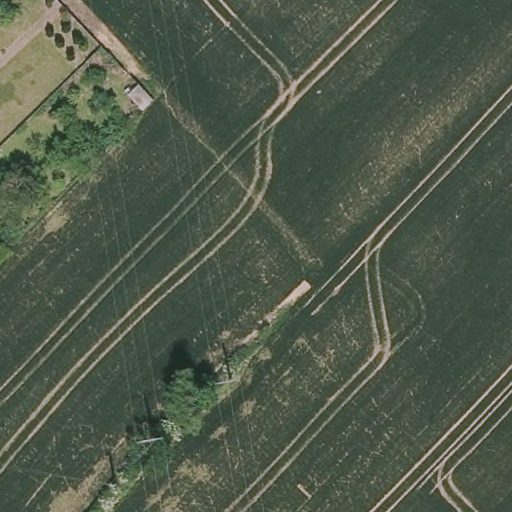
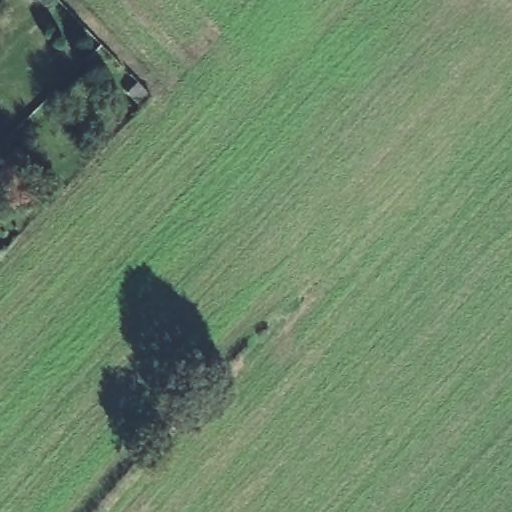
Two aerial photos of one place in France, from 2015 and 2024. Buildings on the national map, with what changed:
[]

